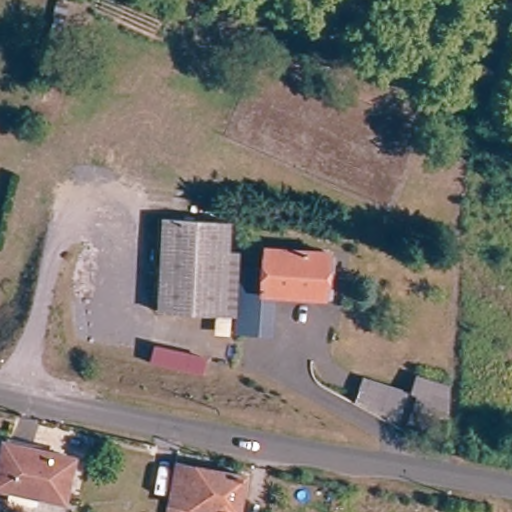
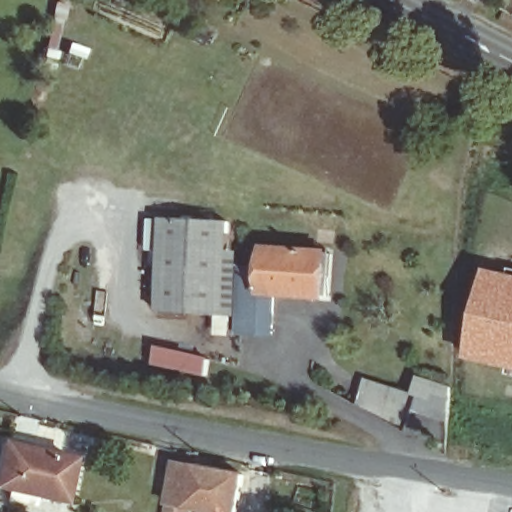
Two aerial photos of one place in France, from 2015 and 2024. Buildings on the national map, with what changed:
unchanged [(156,310),(153,310),(161,218),(165,219),(156,310)]
unchanged [(225,317),(163,311),(171,221),(231,226),(225,317)]
unchanged [(270,252),(333,258),(329,302),(277,297),(267,297),(268,271),(270,252)]
new [(486,267),(512,272),(512,369),(466,358),(486,267)]
unchanged [(268,271),(267,297),(277,297),(273,335),(236,332),(242,268),(268,271)]
new [(151,365),(155,347),(210,359),(205,377),(151,365)]
unchanged [(453,416),(418,408),(413,427),(361,406),(367,381),(422,393),(453,400),(453,416)]
unchanged [(14,483),(0,481),(0,472),(5,444),(6,439),(38,444),(76,451),(68,493),(40,488),(38,501),(12,496),(14,483)]
unchanged [(183,462),(251,475),(244,512),(213,512),(213,510),(197,507),(196,512),(173,512),(183,462)]

